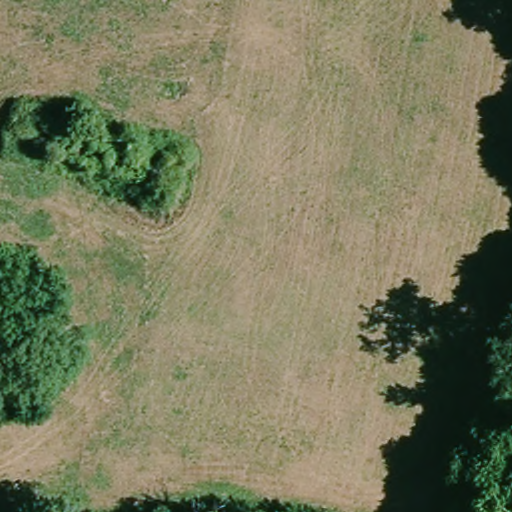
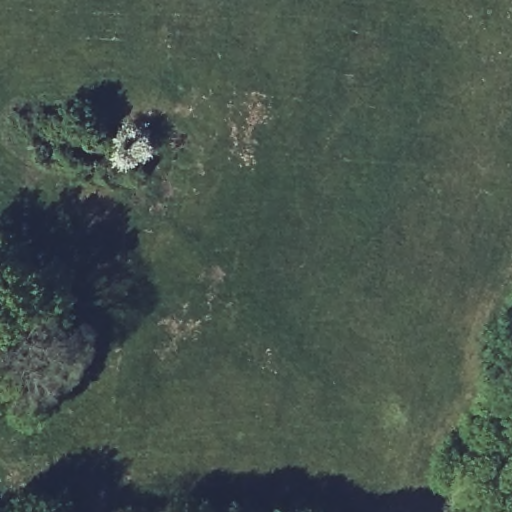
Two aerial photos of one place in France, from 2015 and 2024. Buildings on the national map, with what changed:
unchanged [(0,118),(5,107),(117,151),(111,179),(0,141),(0,118)]

